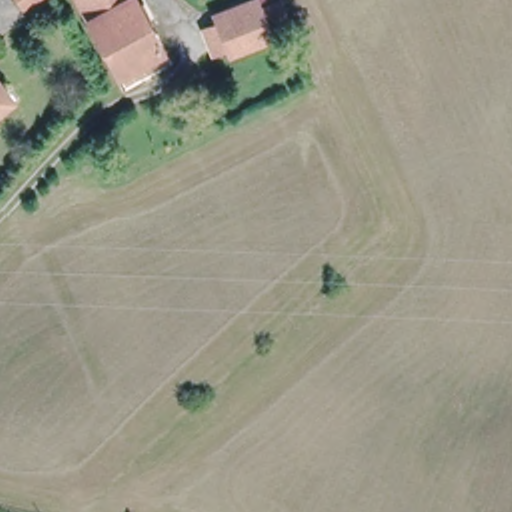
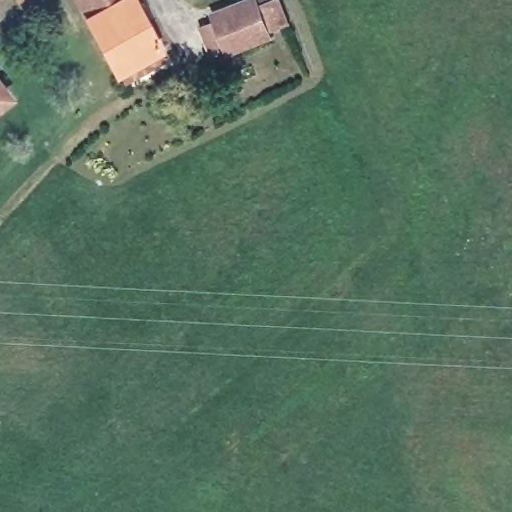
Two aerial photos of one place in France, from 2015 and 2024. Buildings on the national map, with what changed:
unchanged [(12,0),(36,0),(16,9),(12,0)]
unchanged [(115,74),(78,0),(137,0),(163,51),(115,74)]
unchanged [(203,1),(204,0),(256,0),(258,4),(266,0),(275,0),(285,24),(270,32),(272,39),(226,57),(203,1)]
unchanged [(0,104),(0,90),(7,99),(0,104)]

